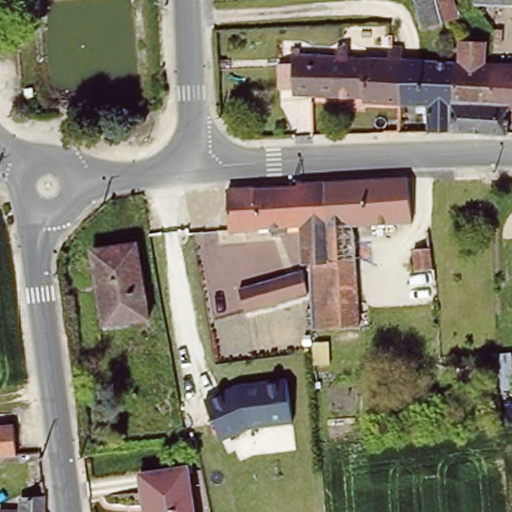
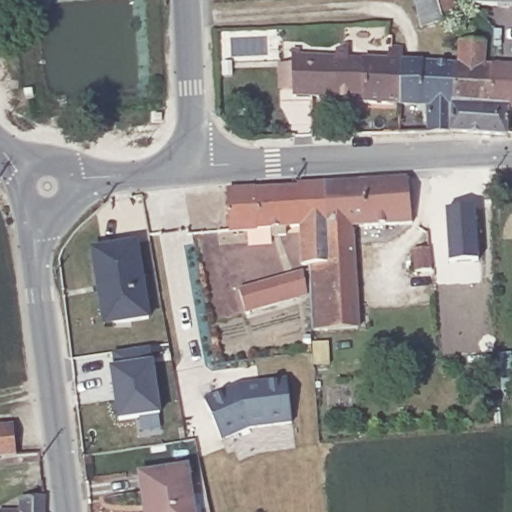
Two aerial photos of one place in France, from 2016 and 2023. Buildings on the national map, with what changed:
unchanged [(459,21),(445,25),(422,27),(414,0),(452,0),(459,21)]
unchanged [(475,0),(512,0),(512,7),(474,7),(475,0)]
unchanged [(458,70),(460,49),(486,51),(486,74),(498,74),(496,115),(512,115),(512,122),(510,140),(453,137),(458,70)]
unchanged [(365,104),(294,104),(294,97),(280,97),(280,67),(295,67),(295,55),(300,55),(301,62),(391,60),(391,52),(405,52),(403,67),(400,113),(365,112),(365,104)]
unchanged [(431,114),(400,113),(403,67),(458,70),(453,137),(430,138),(431,114)]
unchanged [(512,74),(512,115),(496,115),(498,74),(512,74)]
unchanged [(412,225),(356,231),(364,332),(315,333),(311,265),(331,265),(325,183),(408,177),(412,225)]
unchanged [(331,265),(311,265),(302,266),(300,229),(285,230),(285,238),(272,239),(272,230),(230,233),(226,192),(257,191),(297,190),(297,185),(325,183),(331,265)]
unchanged [(416,269),(415,246),(433,245),(434,268),(416,269)]
unchanged [(130,252),(145,324),(101,332),(87,260),(130,252)]
unchanged [(289,281),(305,276),(305,300),(300,302),(299,297),(278,303),(281,315),(268,318),(266,307),(246,312),(240,290),(287,276),(289,281)]
new [(160,414),(120,420),(111,369),(115,368),(113,355),(149,349),(160,414)]
unchanged [(249,428),(221,440),(203,400),(233,386),(286,378),(293,423),(249,428)]
unchanged [(0,460),(0,428),(16,427),(20,456),(20,458),(0,460)]
unchanged [(198,512),(156,512),(153,498),(144,498),(141,479),(190,470),(198,512)]
unchanged [(41,498),(42,512),(17,512),(20,498),(41,498)]

